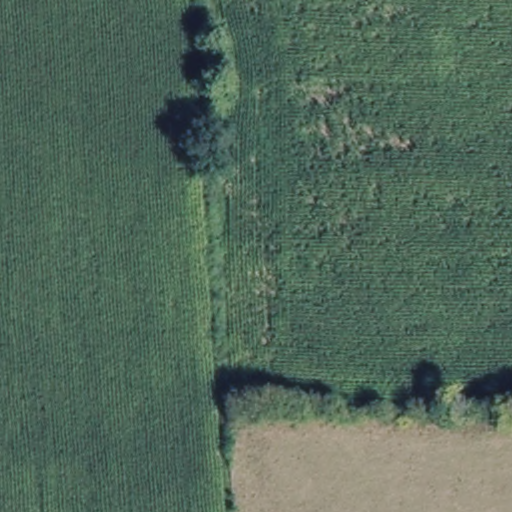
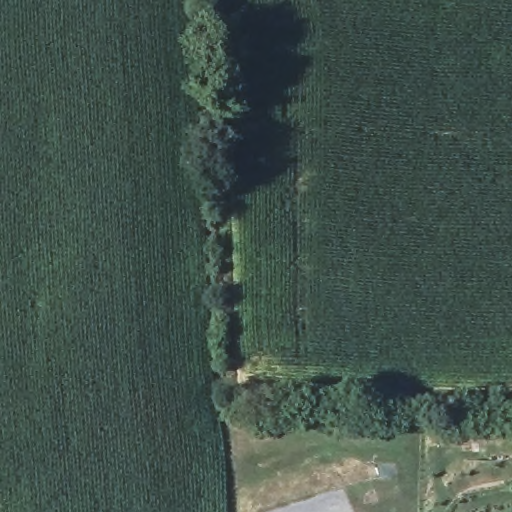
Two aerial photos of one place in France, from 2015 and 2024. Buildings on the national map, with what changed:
[]

